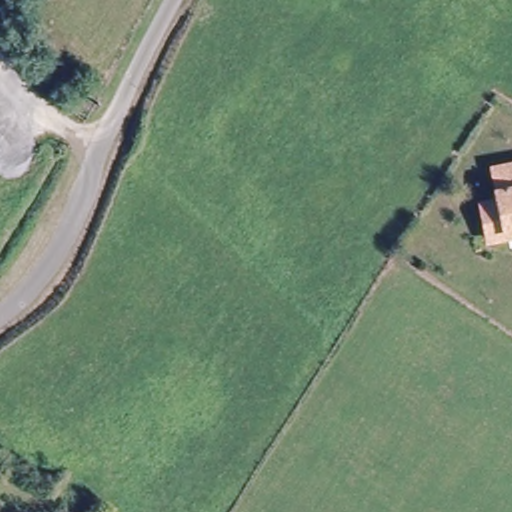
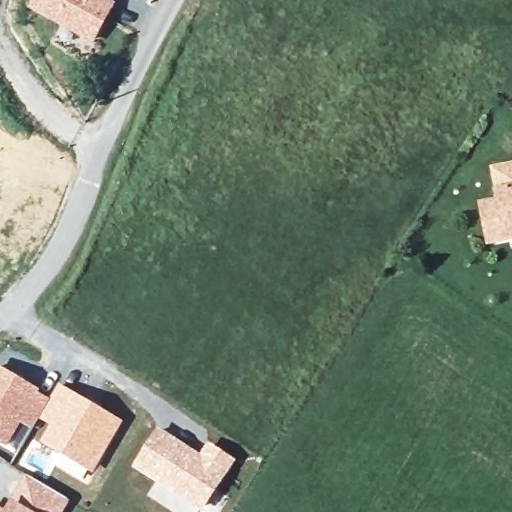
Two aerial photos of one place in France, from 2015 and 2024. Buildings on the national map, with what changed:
new [(117,3),(94,45),(29,9),(34,0),(113,0),(112,0),(117,3)]
unchanged [(477,209),(496,207),(490,175),(512,171),(512,240),(504,243),(484,246),(477,209)]
new [(94,473),(40,443),(51,425),(39,419),(33,428),(22,421),(6,446),(0,442),(0,368),(41,389),(39,393),(50,400),(60,384),(123,422),(94,473)]
new [(158,426),(199,453),(207,441),(236,460),(202,511),(133,464),(158,426)]
new [(63,512),(0,512),(0,507),(8,510),(29,477),(69,501),(63,512)]

